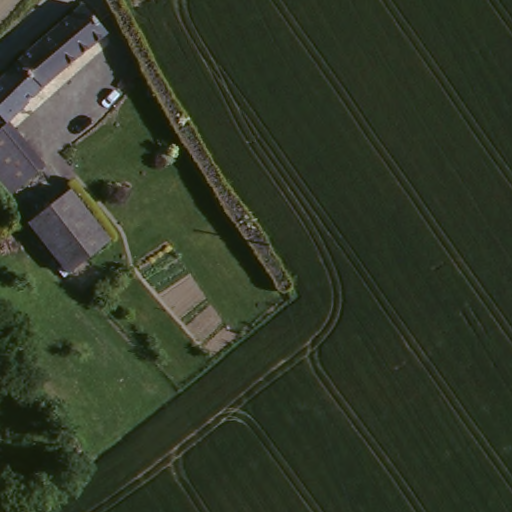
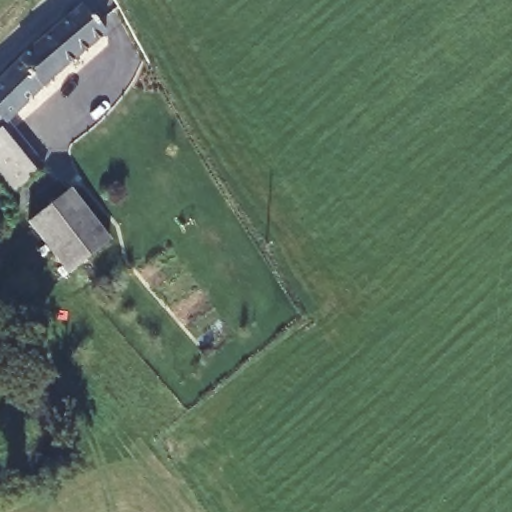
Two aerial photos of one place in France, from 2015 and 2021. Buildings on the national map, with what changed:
unchanged [(29,47),(83,0),(95,0),(111,22),(18,114),(54,159),(16,184),(0,164),(0,149),(3,147),(0,142),(0,76),(29,47)]
unchanged [(75,189),(113,239),(81,265),(36,216),(75,189)]

